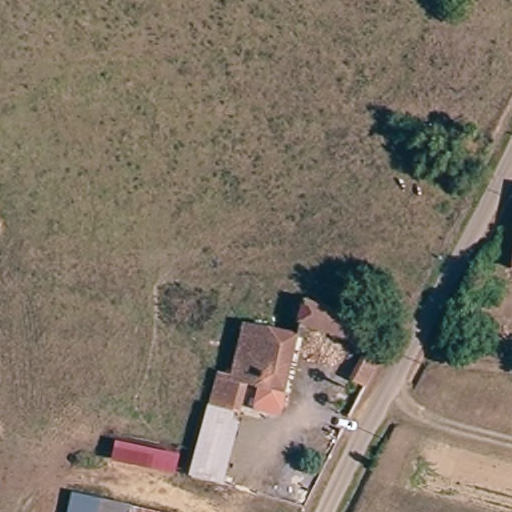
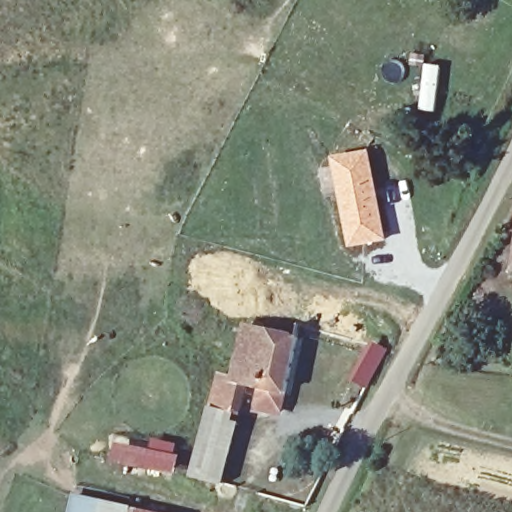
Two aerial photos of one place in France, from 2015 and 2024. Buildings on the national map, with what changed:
new [(369,149),(386,242),(345,248),(330,157),(369,149)]
unchanged [(512,248),(512,269),(510,269),(512,248)]
unchanged [(274,418),(252,413),(257,399),(237,394),(231,415),(250,421),(231,487),(187,476),(217,365),(229,367),(240,324),(275,332),(283,300),(358,317),(354,340),(295,332),(274,418)]
unchanged [(342,382),(358,345),(377,352),(359,389),(342,382)]
new [(112,466),(115,445),(180,454),(177,475),(112,466)]
unchanged [(126,505),(158,512),(64,512),(69,492),(126,505)]

